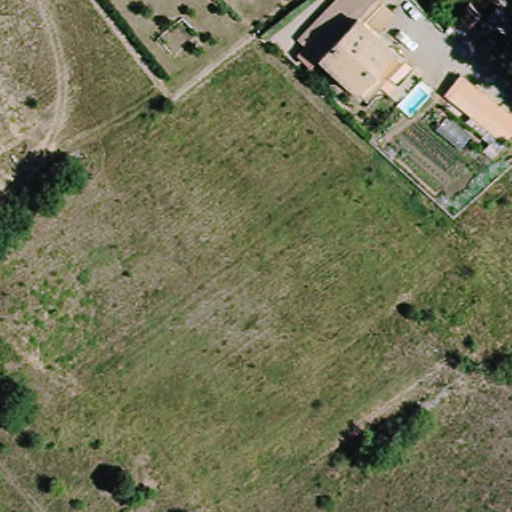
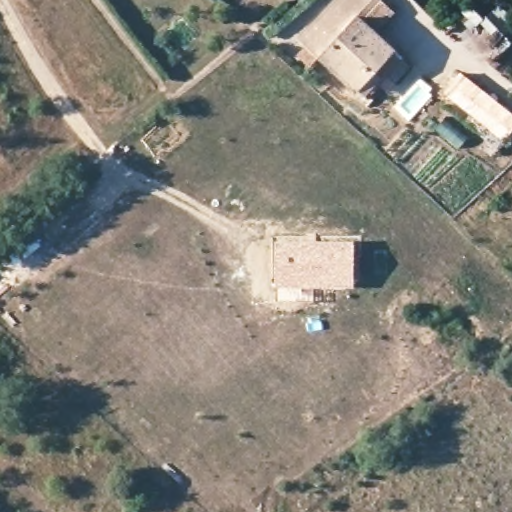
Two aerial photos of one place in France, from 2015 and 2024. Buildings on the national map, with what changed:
unchanged [(358,91),(298,38),(331,0),(374,0),(359,19),(393,47),(403,56),(365,97),(358,91)]
unchanged [(480,47),(506,20),(512,25),(512,37),(492,59),(480,47)]
unchanged [(460,71),(512,114),(512,126),(502,137),(446,91),(460,71)]
new [(355,238),(355,287),(274,286),(273,237),(355,238)]

